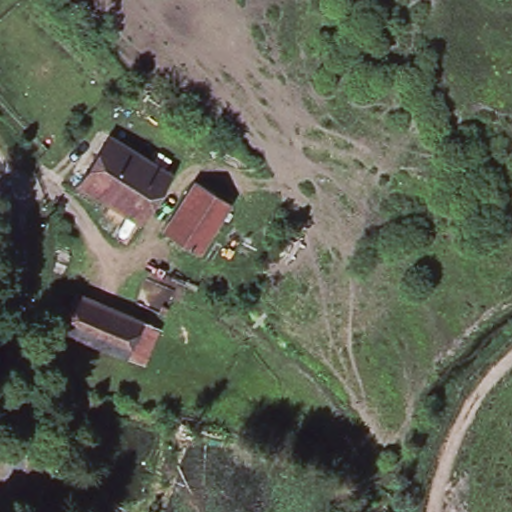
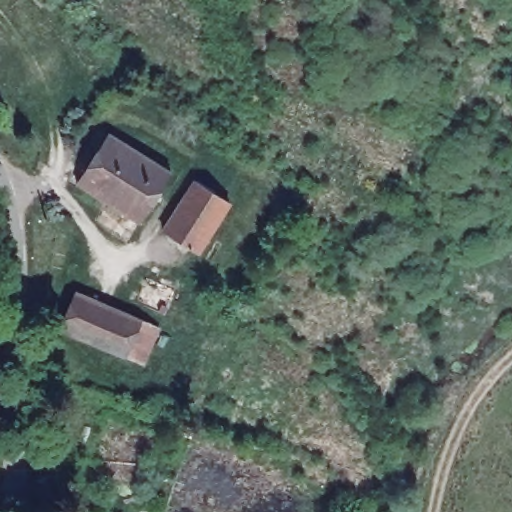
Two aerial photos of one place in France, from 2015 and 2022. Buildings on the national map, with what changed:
unchanged [(111,135),(174,174),(142,224),(110,203),(80,184),(111,135)]
unchanged [(199,182),(233,203),(200,254),(167,234),(199,182)]
unchanged [(83,299),(150,326),(135,363),(67,337),(83,299)]

